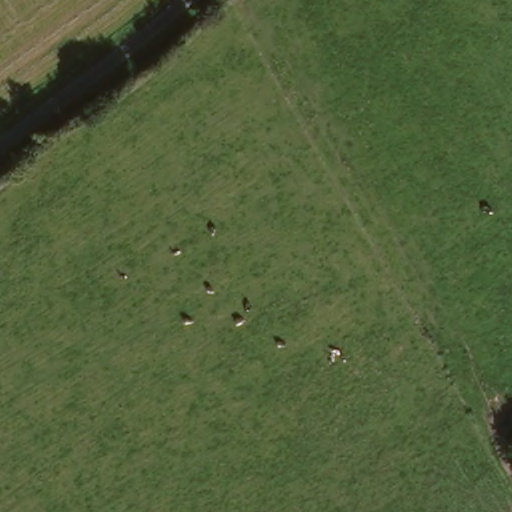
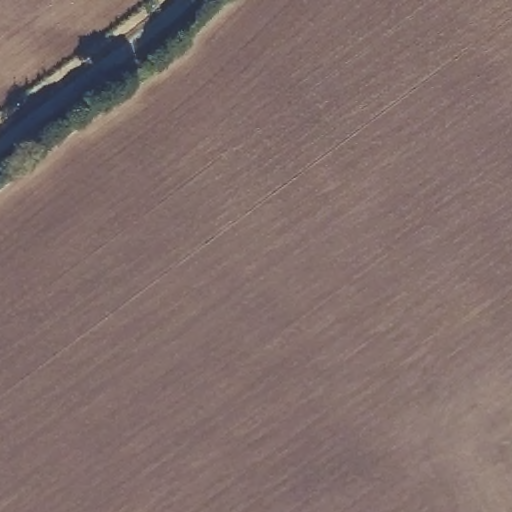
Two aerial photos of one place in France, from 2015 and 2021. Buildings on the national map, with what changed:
[]

